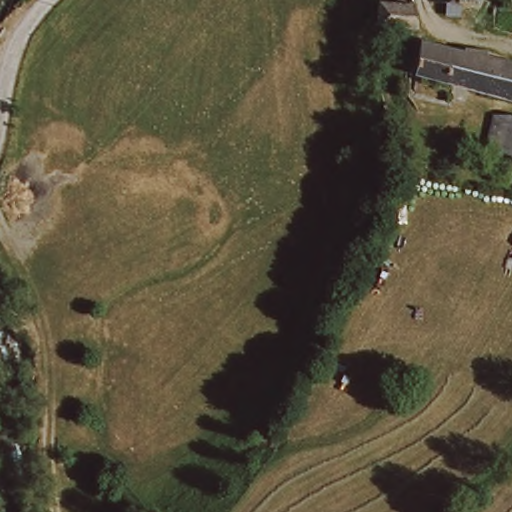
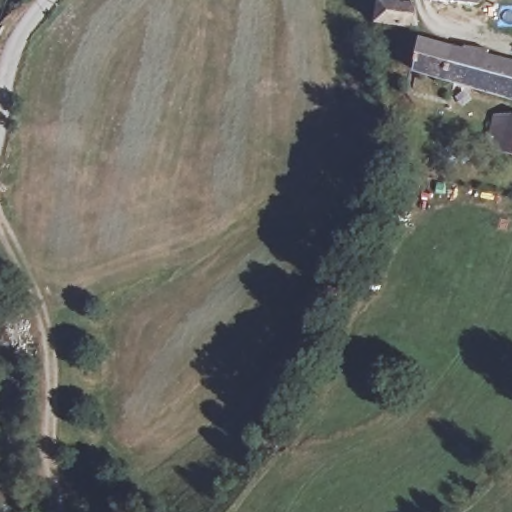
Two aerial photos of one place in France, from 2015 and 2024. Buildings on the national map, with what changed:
unchanged [(415,34),(397,29),(378,23),(378,1),(413,10),(415,9),(415,34)]
unchanged [(512,76),(512,107),(492,101),(450,89),(417,80),(420,49),(438,53),(465,59),(466,53),(467,53),(472,54),(482,58),(482,70),(512,76)]
unchanged [(491,145),(493,127),(502,127),(504,117),(512,117),(512,150),(511,150),(491,145)]

